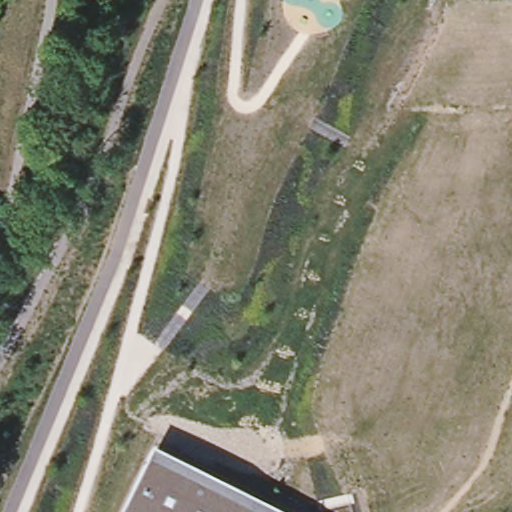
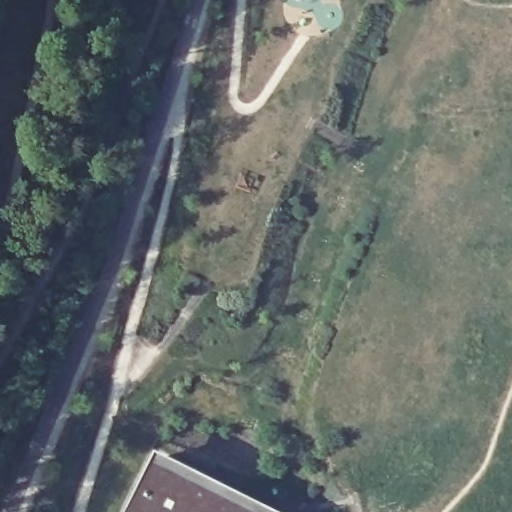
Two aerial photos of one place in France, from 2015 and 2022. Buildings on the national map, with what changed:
unchanged [(282,512),(125,512),(156,450),(282,512)]

